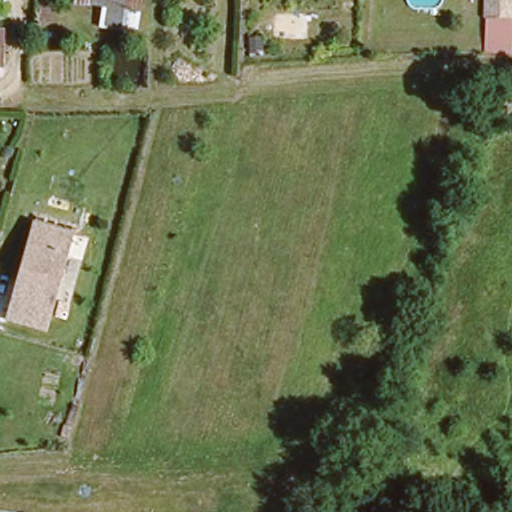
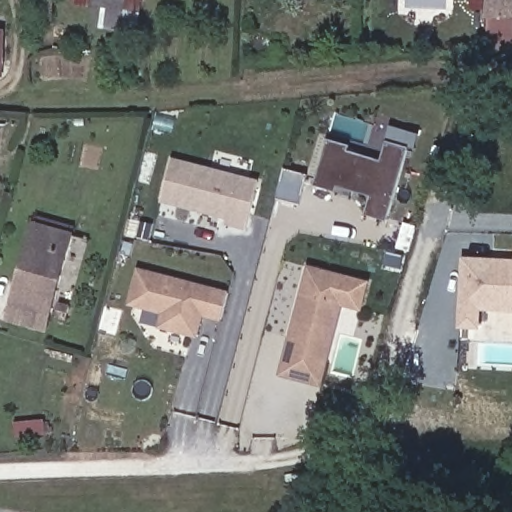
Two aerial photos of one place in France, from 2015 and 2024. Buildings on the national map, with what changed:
unchanged [(94,27),(94,10),(71,5),(71,0),(139,0),(137,32),(94,27)]
unchanged [(509,0),(508,22),(479,21),(479,0),(509,0)]
unchanged [(0,59),(0,29),(4,29),(0,59)]
new [(353,191),(351,197),(313,185),(327,139),(348,145),(347,151),(380,160),(386,141),(407,148),(386,221),(364,214),(371,196),(353,191)]
new [(257,182),(245,231),(226,226),(227,220),(160,204),(171,160),(257,182)]
unchanged [(3,314),(8,300),(35,221),(70,234),(44,311),(39,326),(3,314)]
new [(481,311),(480,330),(457,328),(462,257),(512,260),(512,312),(481,311)]
new [(361,308),(342,303),(332,340),(314,335),(307,356),(286,350),(293,320),(298,321),(300,313),(297,307),(307,266),(367,282),(361,308)]
new [(128,307),(137,270),(227,292),(220,322),(202,318),(199,340),(157,329),(161,315),(128,307)]
new [(307,356),(314,335),(332,340),(321,386),(278,375),(286,350),(307,356)]

